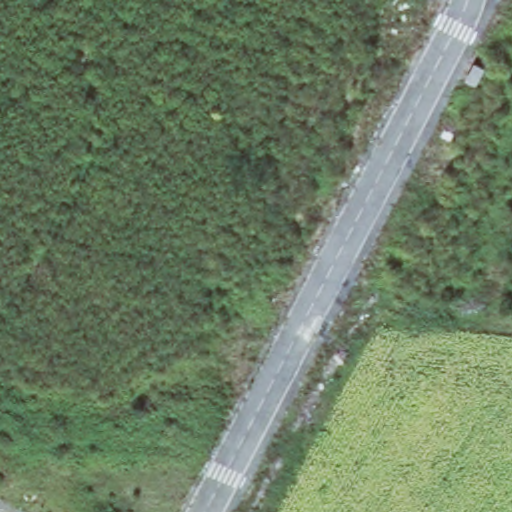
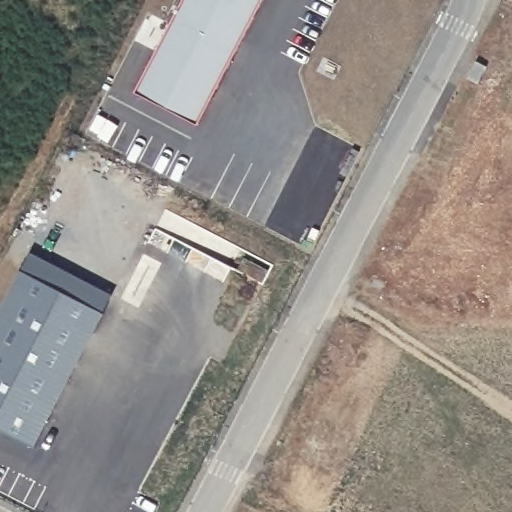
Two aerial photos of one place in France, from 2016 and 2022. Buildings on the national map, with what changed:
new [(267,0),(214,101),(152,69),(187,0),(267,0)]
new [(512,57),(512,70),(509,76),(499,71),(508,55),(512,57)]
new [(152,69),(214,101),(203,123),(141,90),(152,69)]
new [(34,255),(115,296),(106,313),(25,271),(34,255)]
new [(25,271),(106,313),(37,446),(0,427),(0,319),(25,271)]

